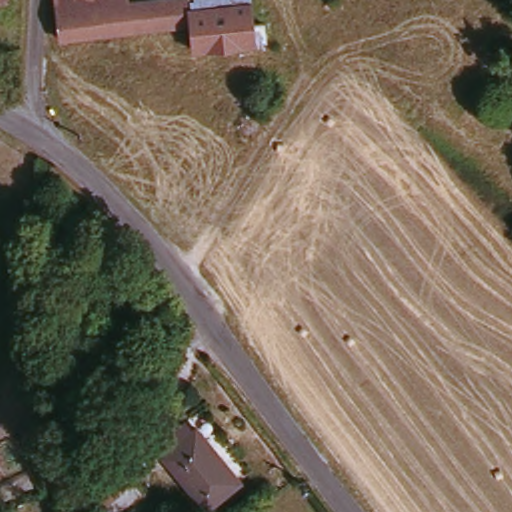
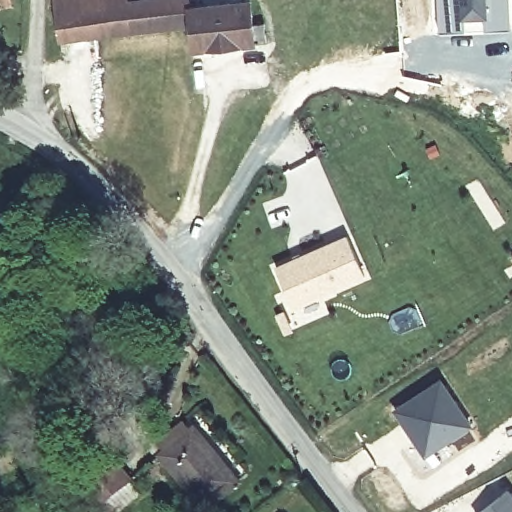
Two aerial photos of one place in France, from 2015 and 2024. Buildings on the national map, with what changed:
demolished [(0,12),(0,0),(13,0),(15,10),(0,12)]
unchanged [(124,6),(64,14),(62,0),(123,0),(124,6)]
unchanged [(124,6),(172,0),(185,0),(187,15),(190,33),(68,47),(64,14),(124,6)]
unchanged [(248,6),(187,15),(185,0),(247,0),(248,6)]
new [(437,33),(434,0),(512,0),(512,32),(437,33)]
unchanged [(256,47),(193,56),(190,33),(187,15),(248,6),(256,47)]
demolished [(496,110),(512,120),(512,163),(475,143),(496,110)]
new [(347,237),(365,276),(296,310),(278,271),(347,237)]
new [(395,411),(441,380),(473,427),(426,457),(395,411)]
unchanged [(242,486),(214,510),(165,456),(193,430),(242,486)]
unchanged [(115,512),(99,512),(91,503),(123,476),(137,494),(115,512)]
new [(512,499),(512,512),(483,512),(507,493),(512,499)]

